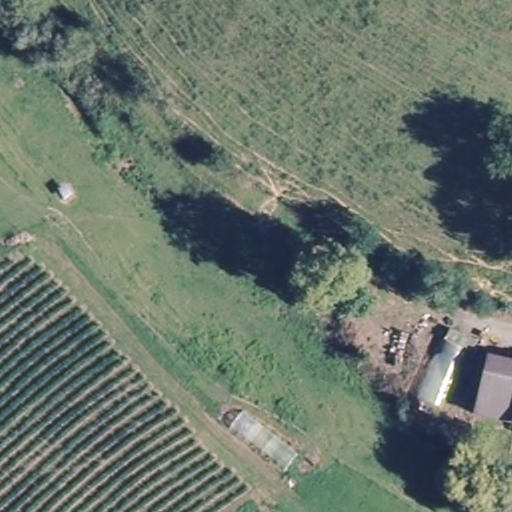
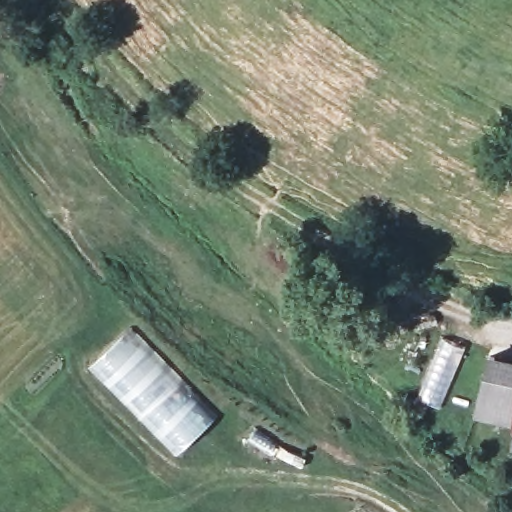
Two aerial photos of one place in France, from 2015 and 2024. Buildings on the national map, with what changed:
new [(130,327),(175,370),(215,414),(175,454),(89,367),(130,327)]
unchanged [(473,382),(481,384),(488,354),(512,360),(512,422),(466,410),(473,382)]

